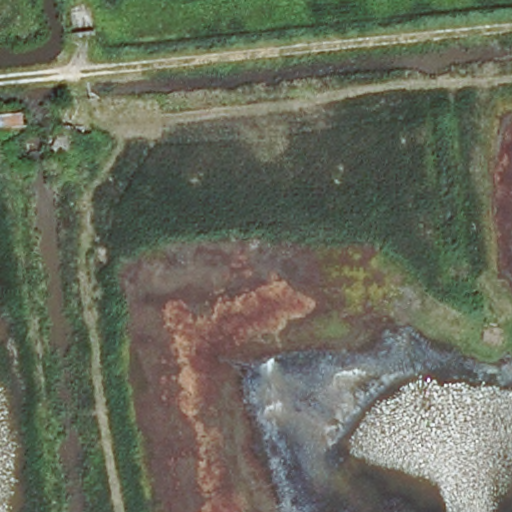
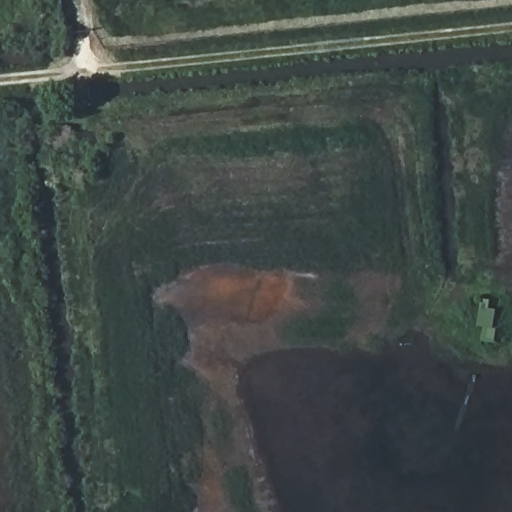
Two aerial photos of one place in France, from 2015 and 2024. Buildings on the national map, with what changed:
unchanged [(54,153),(57,124),(75,126),(69,156),(54,153)]

